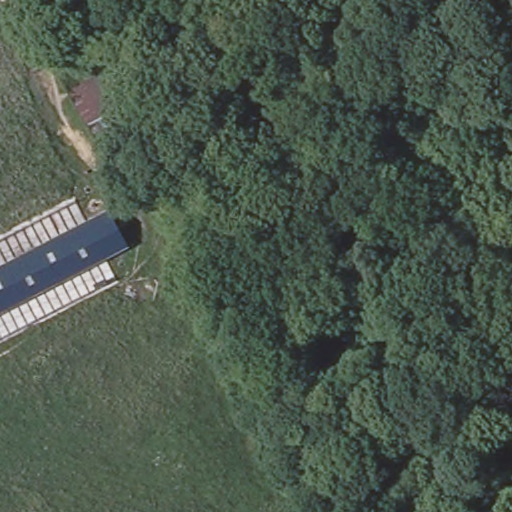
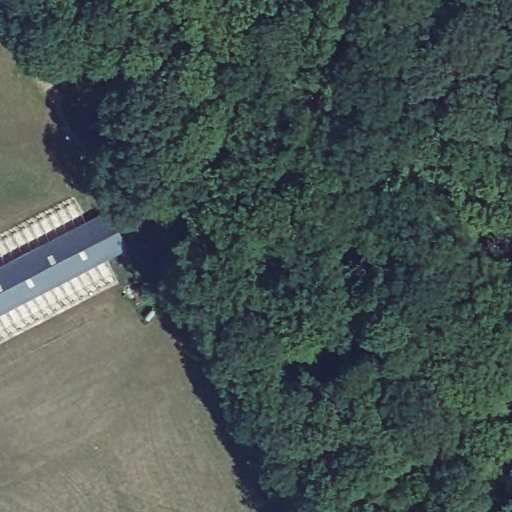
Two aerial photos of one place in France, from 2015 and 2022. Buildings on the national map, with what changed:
unchanged [(126,135),(100,150),(15,5),(23,0),(48,0),(126,135)]
unchanged [(0,313),(0,266),(111,208),(128,245),(0,313)]

